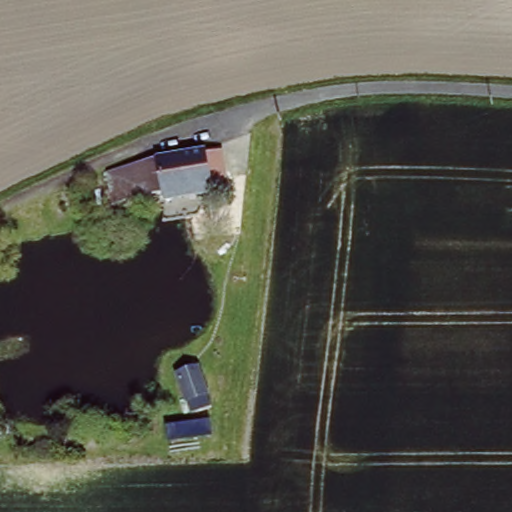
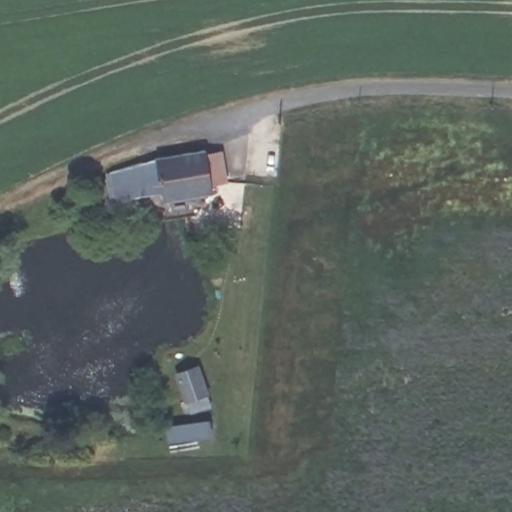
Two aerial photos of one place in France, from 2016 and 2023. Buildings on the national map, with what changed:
unchanged [(115,204),(110,175),(163,158),(200,151),(201,156),(220,152),(223,180),(207,184),(208,195),(165,205),(164,199),(143,197),(115,204)]
unchanged [(198,365),(209,393),(187,401),(177,372),(198,365)]

